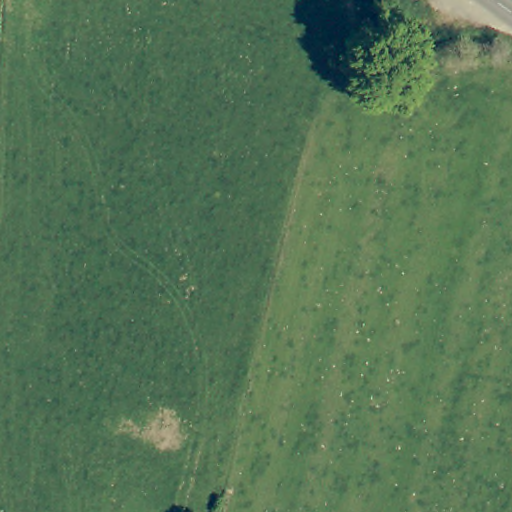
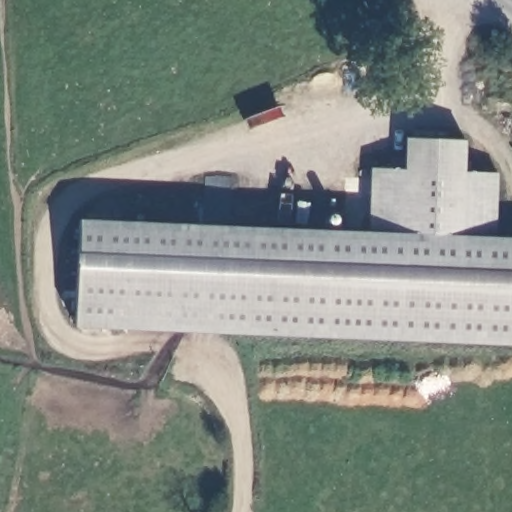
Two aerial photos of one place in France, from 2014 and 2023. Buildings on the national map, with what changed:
new [(367,230),(370,168),(405,169),(406,137),(466,140),(465,172),(498,172),(497,237),(512,237),(512,347),(74,327),(80,219),(367,230)]

